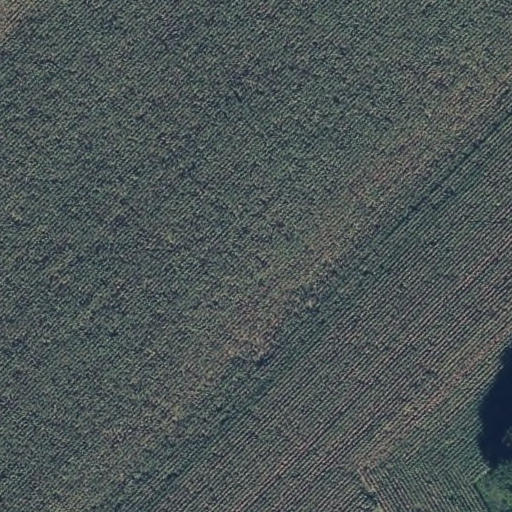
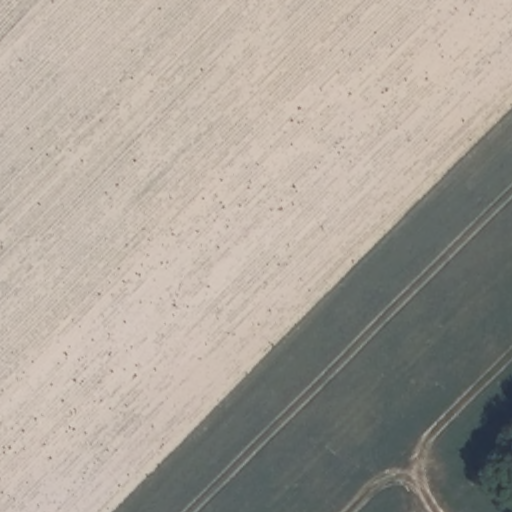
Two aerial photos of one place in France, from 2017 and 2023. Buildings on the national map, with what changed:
[]

